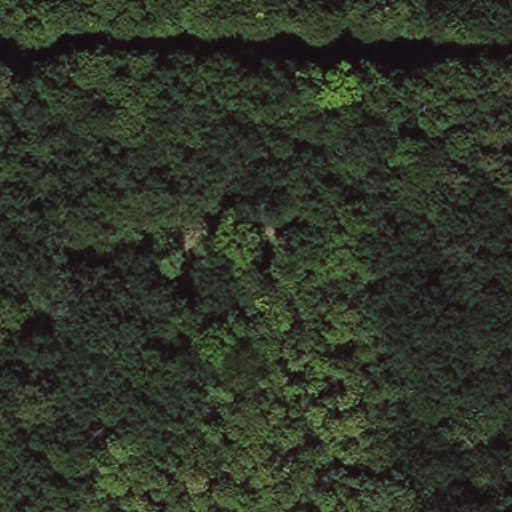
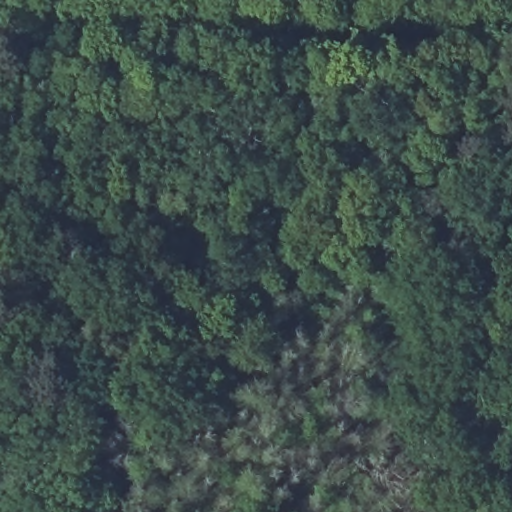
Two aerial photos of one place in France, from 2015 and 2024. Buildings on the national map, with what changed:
[]

